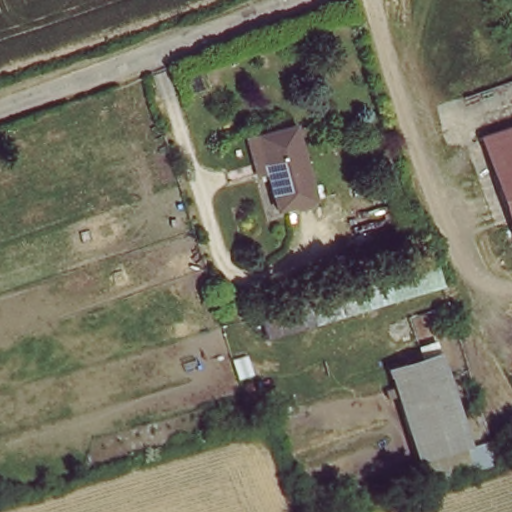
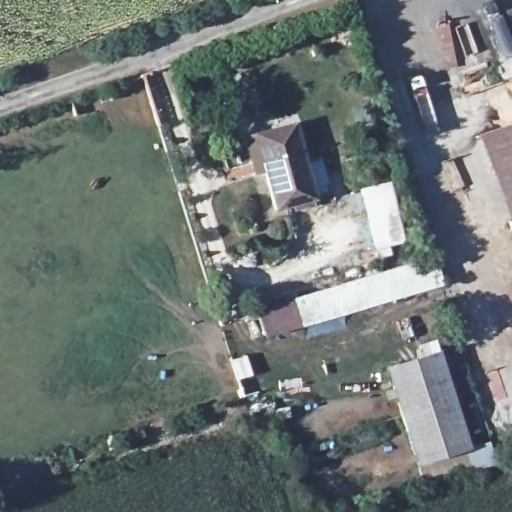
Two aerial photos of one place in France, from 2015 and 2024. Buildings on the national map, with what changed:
unchanged [(296,124),(315,196),(276,208),(253,135),(296,124)]
unchanged [(512,133),(512,245),(482,143),(512,133)]
new [(406,241),(375,249),(360,189),(391,181),(406,241)]
new [(442,285),(264,338),(255,309),(434,255),(442,285)]
unchanged [(444,358),(472,453),(417,470),(390,371),(444,358)]

